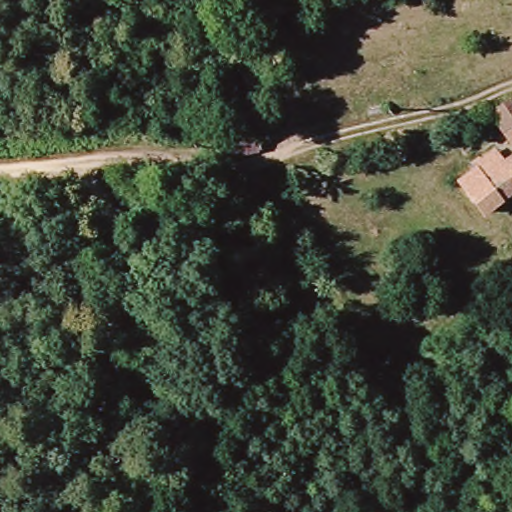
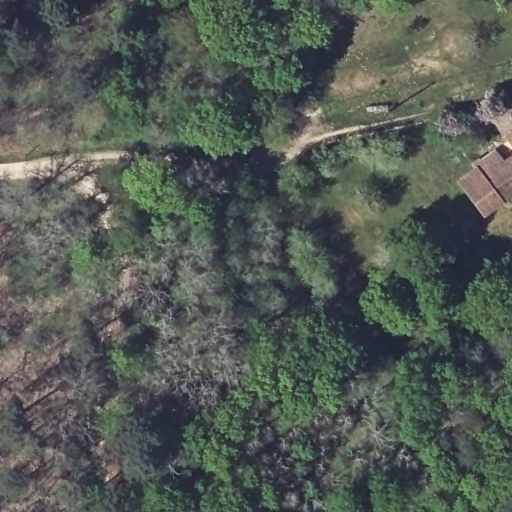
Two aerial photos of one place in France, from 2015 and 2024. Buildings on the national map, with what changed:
unchanged [(512,100),(512,149),(491,110),(512,100)]
unchanged [(475,174),(496,159),(503,169),(512,163),(512,200),(499,209),(475,174)]

